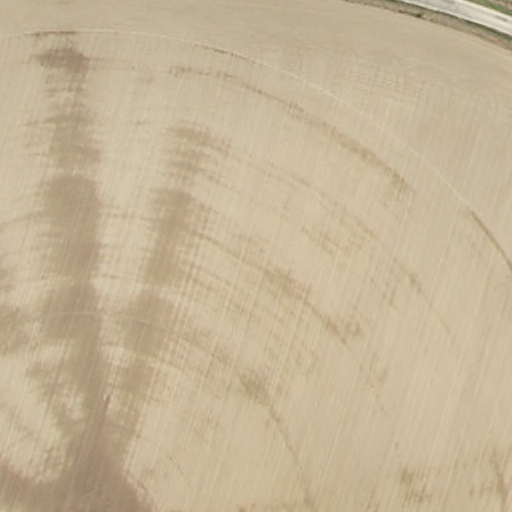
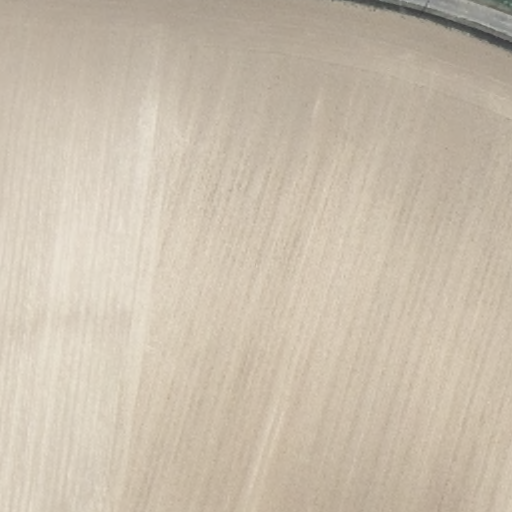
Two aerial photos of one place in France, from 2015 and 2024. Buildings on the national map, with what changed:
[]

